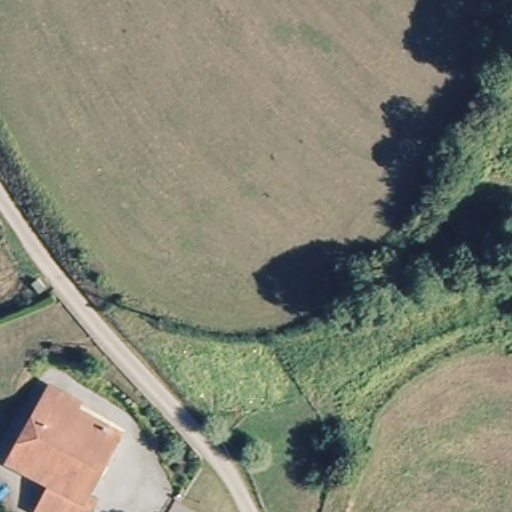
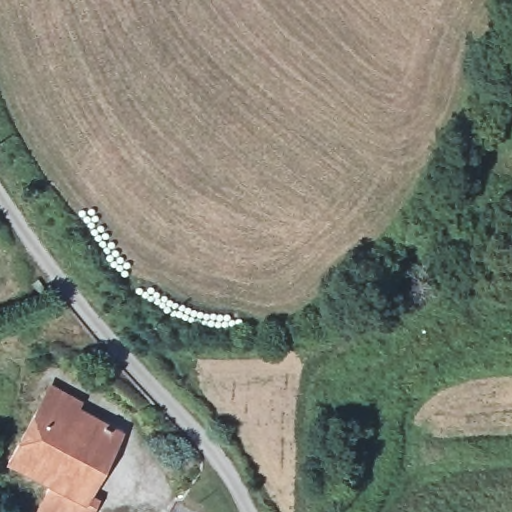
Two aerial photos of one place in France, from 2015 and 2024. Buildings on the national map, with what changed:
unchanged [(41,511),(50,493),(13,471),(8,467),(50,398),(72,411),(67,421),(87,432),(90,427),(116,443),(80,508),(86,512),(40,512),(41,511)]
unchanged [(220,471),(212,482),(194,463),(204,451),(220,471)]

